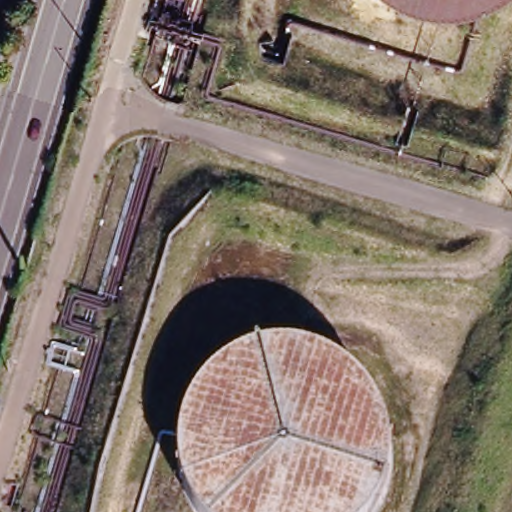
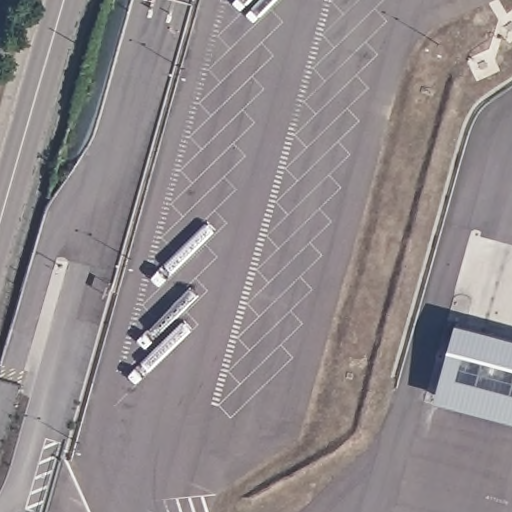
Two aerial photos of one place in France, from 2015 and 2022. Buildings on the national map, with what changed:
new [(512,421),(435,399),(458,321),(512,336),(512,421)]

